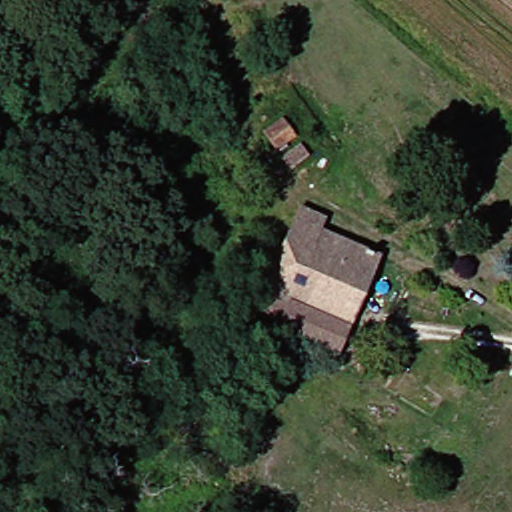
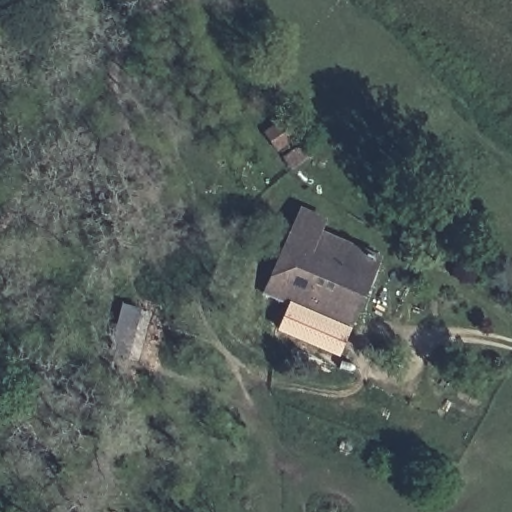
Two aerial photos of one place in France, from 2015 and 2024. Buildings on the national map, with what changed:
unchanged [(310,207),(332,215),(327,227),(385,254),(357,327),(302,302),(293,320),(269,309),(310,207)]
unchanged [(302,302),(357,327),(347,347),(291,325),(293,320),(302,302)]

